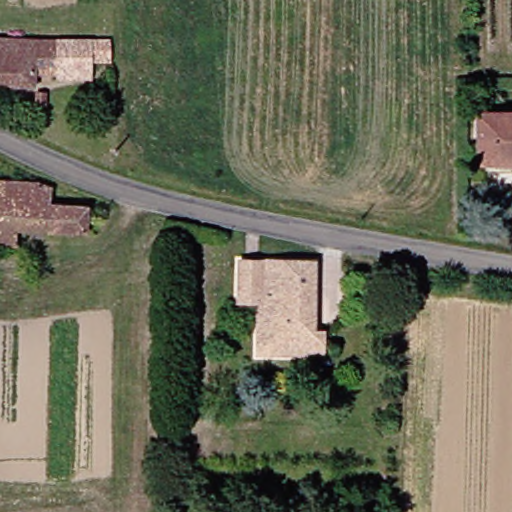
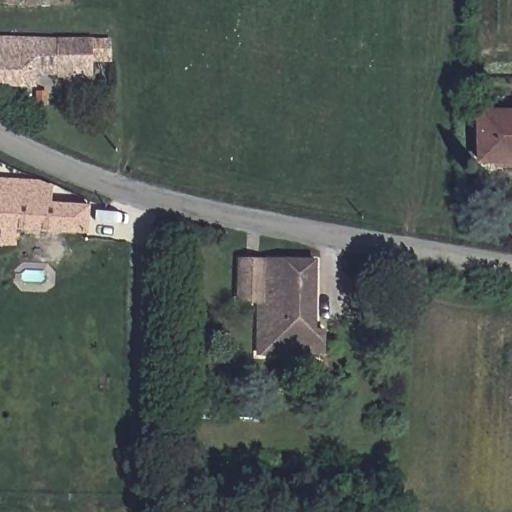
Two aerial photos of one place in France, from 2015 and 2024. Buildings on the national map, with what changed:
unchanged [(81,53),(82,80),(46,80),(46,64),(28,63),(28,78),(29,91),(0,90),(0,43),(100,41),(100,52),(81,53)]
unchanged [(508,169),(473,169),(474,117),(512,117),(512,164),(508,169)]
unchanged [(84,206),(81,233),(10,229),(10,245),(0,245),(0,181),(34,183),(45,187),(44,204),(84,206)]
unchanged [(305,332),(300,332),(299,354),(248,352),(249,301),(228,300),(230,261),(305,262),(305,332)]

